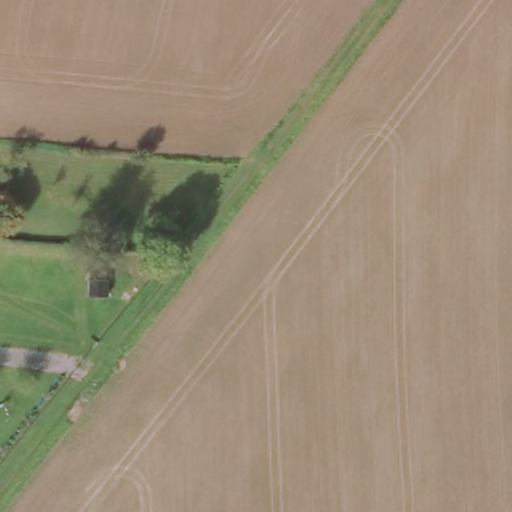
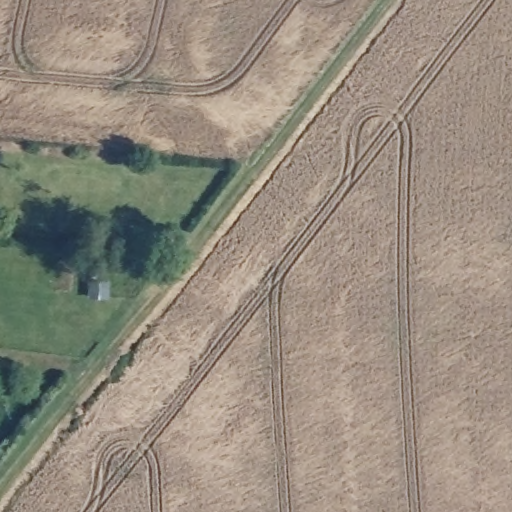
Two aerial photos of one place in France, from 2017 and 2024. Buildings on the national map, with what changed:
unchanged [(107,283),(107,299),(87,299),(87,283),(107,283)]

